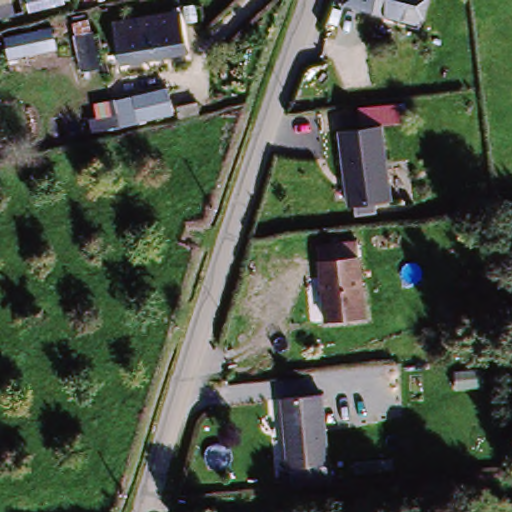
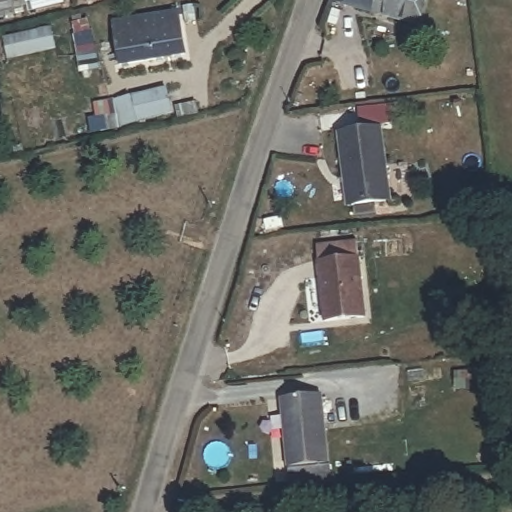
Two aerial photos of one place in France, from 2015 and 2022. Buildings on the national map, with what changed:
unchanged [(0,0),(19,0),(22,9),(0,15),(0,0)]
unchanged [(366,0),(430,0),(426,17),(366,0)]
unchanged [(115,24),(179,15),(182,32),(118,42),(115,24)]
unchanged [(54,47),(9,56),(5,35),(17,33),(49,26),(54,47)]
unchanged [(99,65),(83,69),(75,36),(91,32),(99,65)]
unchanged [(121,58),(118,42),(182,32),(185,51),(121,58)]
unchanged [(140,120),(135,96),(166,90),(171,113),(140,120)]
unchanged [(133,109),(130,109),(132,121),(121,125),(116,100),(130,96),(133,109)]
unchanged [(361,131),(357,110),(400,105),(402,124),(382,128),(392,202),(375,205),(377,216),(356,219),(353,205),(349,206),(339,135),(361,131)]
unchanged [(324,314),(319,260),(317,240),(357,236),(359,255),(364,310),(324,314)]
unchanged [(292,475),(291,457),(283,390),(323,385),(330,453),(332,470),(292,475)]

